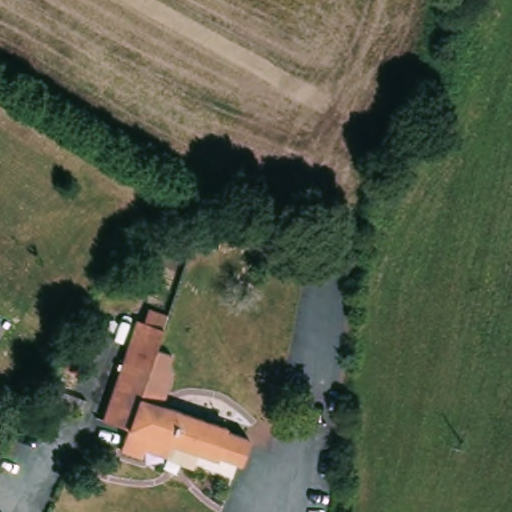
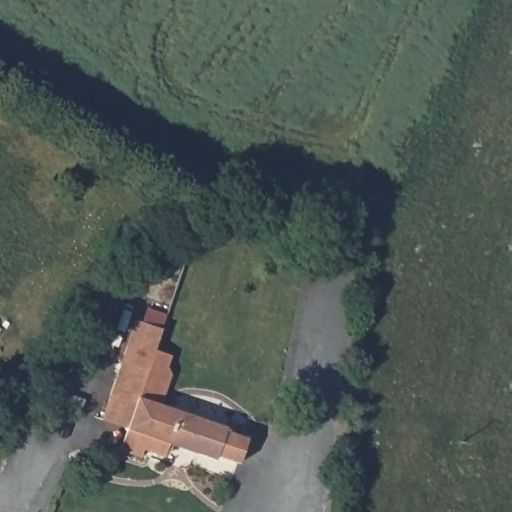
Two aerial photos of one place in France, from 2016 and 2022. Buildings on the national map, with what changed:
unchanged [(147,448),(145,455),(123,448),(131,426),(106,419),(139,319),(166,327),(143,396),(229,426),(230,428),(252,437),(244,461),(222,454),(218,457),(173,441),(168,454),(147,448)]
unchanged [(88,403),(83,415),(54,406),(59,391),(88,403)]

